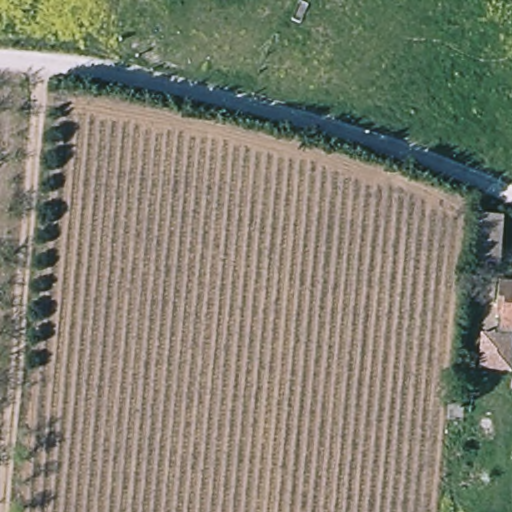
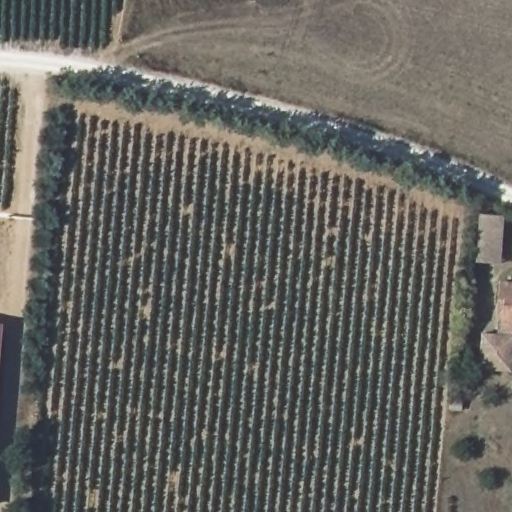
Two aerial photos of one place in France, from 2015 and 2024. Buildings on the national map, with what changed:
unchanged [(496,219),(495,233),(483,232),(484,217),(496,219)]
unchanged [(509,330),(504,329),(508,293),(512,293),(512,340),(509,340),(509,330)]
new [(0,365),(0,325),(3,325),(0,365)]

